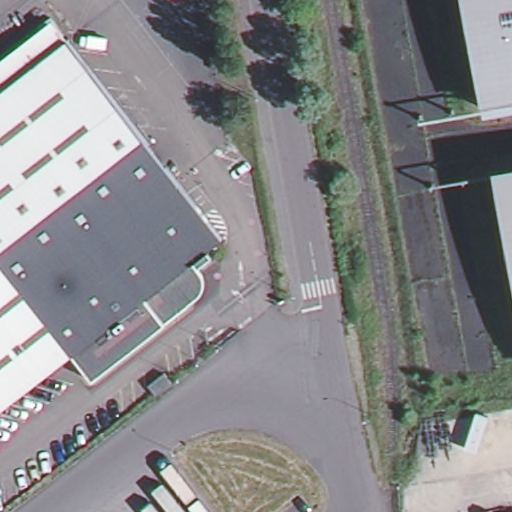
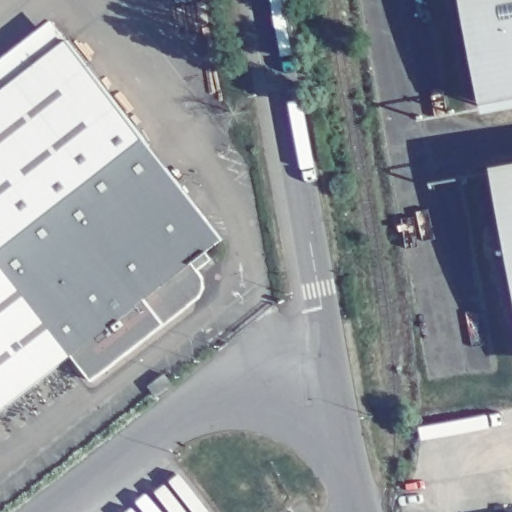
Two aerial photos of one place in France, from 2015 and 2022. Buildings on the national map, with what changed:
unchanged [(482,106),(462,0),(512,0),(512,100),(482,106)]
unchanged [(68,38),(0,91),(0,63),(55,21),(68,38)]
unchanged [(222,237),(205,251),(71,353),(0,408),(0,91),(68,38),(222,237)]
unchanged [(495,181),(512,178),(512,276),(495,181)]
unchanged [(210,258),(197,268),(203,277),(203,282),(201,290),(195,300),(91,380),(71,353),(205,251),(210,258)]
unchanged [(160,398),(153,391),(168,380),(174,387),(160,398)]

